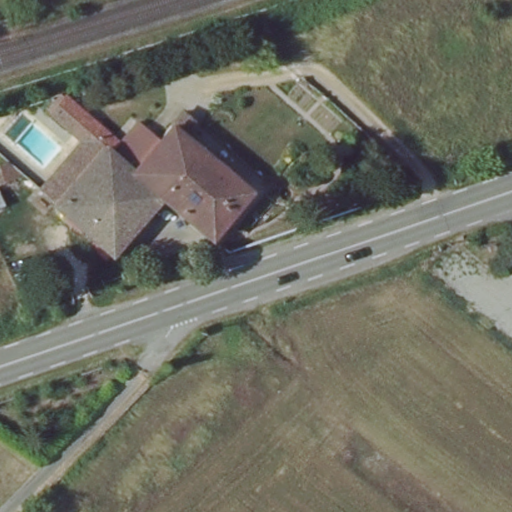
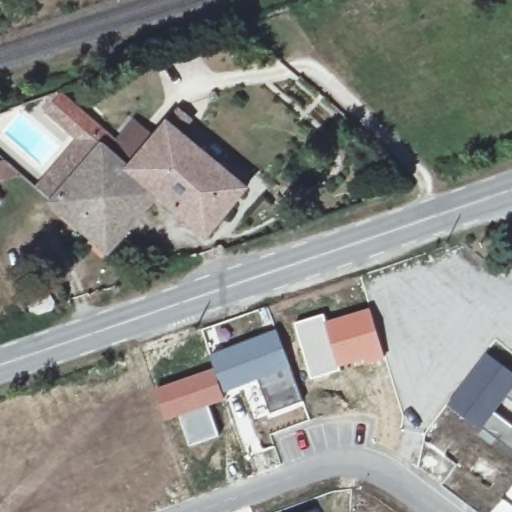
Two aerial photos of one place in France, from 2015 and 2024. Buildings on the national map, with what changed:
unchanged [(206,240),(189,230),(157,203),(108,257),(27,179),(71,141),(43,112),(66,90),(119,138),(140,127),(154,140),(168,124),(250,190),(206,240)]
unchanged [(14,158),(20,175),(0,181),(0,163),(14,158)]
unchanged [(8,213),(0,217),(0,189),(8,213)]
unchanged [(28,293),(53,283),(60,302),(34,310),(28,293)]
new [(370,307),(385,359),(340,369),(326,320),(370,307)]
new [(324,312),(326,320),(340,369),(311,379),(294,321),(324,312)]
new [(276,327),(291,367),(257,382),(224,394),(213,367),(208,353),(276,327)]
new [(512,372),(512,390),(478,433),(445,404),(485,350),(512,372)]
new [(213,367),(224,394),(226,400),(210,406),(178,417),(163,422),(152,388),(213,367)]
new [(291,367),(303,401),(269,413),(257,382),(291,367)]
new [(498,443),(495,447),(478,433),(512,390),(512,453),(498,443)]
new [(210,406),(221,436),(188,447),(178,417),(210,406)]
new [(307,511),(307,512),(304,512),(307,511)]

